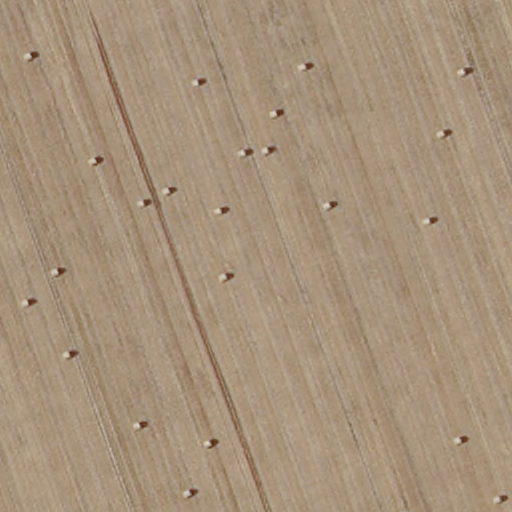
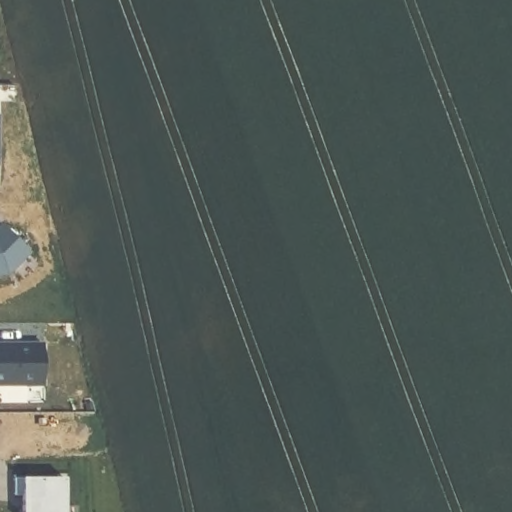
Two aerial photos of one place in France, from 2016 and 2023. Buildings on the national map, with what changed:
new [(0,236),(8,229),(31,251),(8,274),(0,274),(0,236)]
new [(46,345),(46,385),(0,384),(0,345),(46,345)]
new [(64,512),(23,512),(23,495),(14,496),(14,480),(63,479),(64,512)]

